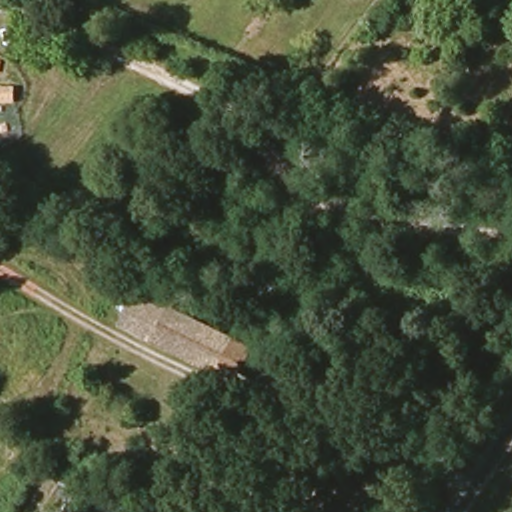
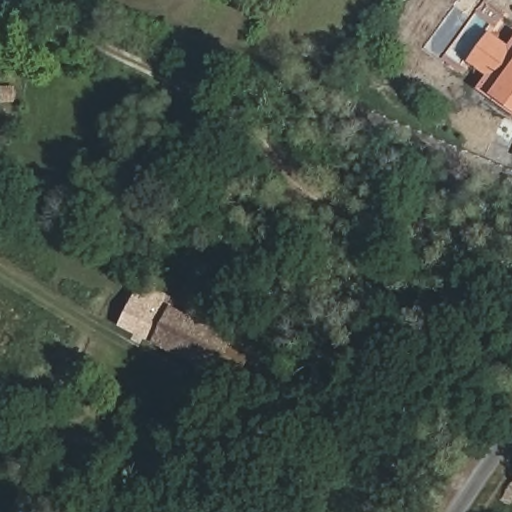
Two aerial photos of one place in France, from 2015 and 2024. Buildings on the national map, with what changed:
new [(491,32),(509,46),(512,42),(512,114),(477,89),(485,76),(467,62),(491,32)]
unchanged [(237,382),(219,372),(125,328),(145,285),(176,299),(171,308),(236,338),(255,347),(237,382)]

